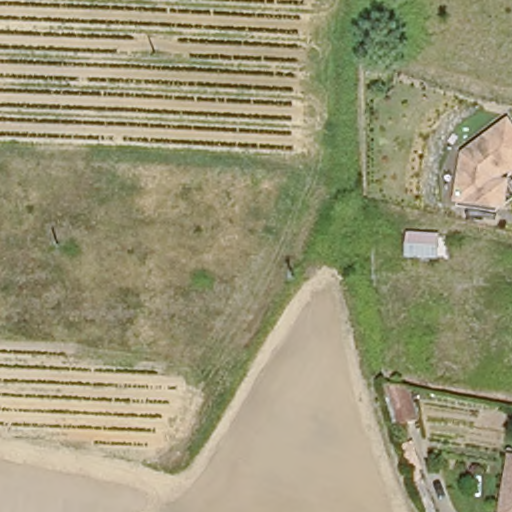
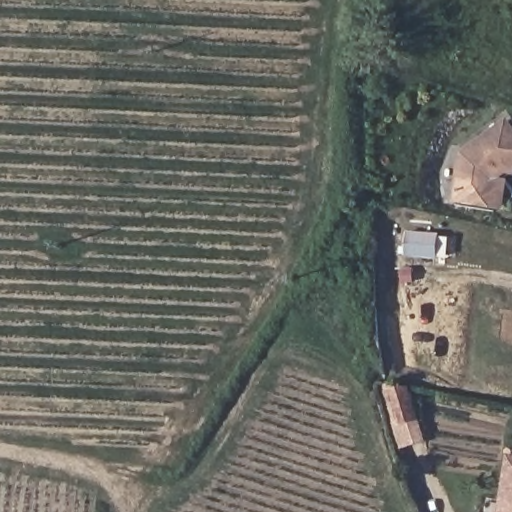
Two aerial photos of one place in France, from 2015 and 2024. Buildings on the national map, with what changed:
unchanged [(483,204),(456,200),(462,154),(505,123),(506,121),(508,124),(512,129),(512,172),(504,173),(494,180),(507,182),(504,207),(483,204)]
unchanged [(405,254),(407,233),(436,235),(435,258),(405,254)]
unchanged [(400,420),(387,384),(406,388),(416,414),(400,420)]
unchanged [(511,459),(512,459),(512,512),(500,512),(511,459)]

